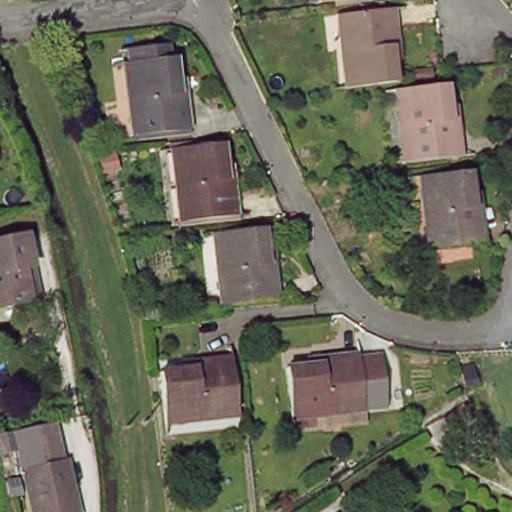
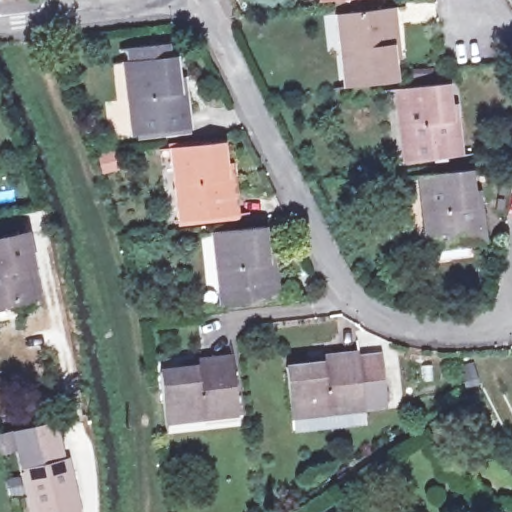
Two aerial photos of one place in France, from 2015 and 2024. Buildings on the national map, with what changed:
unchanged [(350,48),(347,14),(396,11),(398,43),(388,44),(389,59),(396,58),(398,82),(346,86),(344,48),(350,48)]
unchanged [(132,93),(128,57),(179,51),(181,73),(188,72),(189,87),(193,124),(143,129),(139,93),(132,93)]
unchanged [(409,161),(407,128),(400,129),(397,91),(447,87),(448,109),(443,109),(444,125),(455,124),(458,158),(409,161)]
unchanged [(175,145),(226,139),(228,161),(233,160),(234,173),(238,211),(189,216),(185,179),(179,180),(175,145)]
unchanged [(431,248),(429,216),(423,216),(420,175),(468,172),(470,196),(465,197),(466,210),(479,209),(482,244),(431,248)]
unchanged [(229,271),(222,271),(218,234),(268,229),(270,251),(278,250),(279,264),(283,300),(232,305),(229,271)]
unchanged [(29,296),(0,301),(0,235),(26,231),(31,261),(37,295),(29,296)]
unchanged [(166,420),(161,368),(183,366),(183,371),(198,370),(197,358),(233,354),(239,406),(202,410),(203,416),(166,420)]
unchanged [(328,415),(293,419),(288,368),(309,366),(309,371),(324,370),(323,358),(360,355),(360,359),(379,357),(384,402),(385,409),(328,415)]
unchanged [(64,450),(77,512),(34,512),(23,458),(64,450)]

